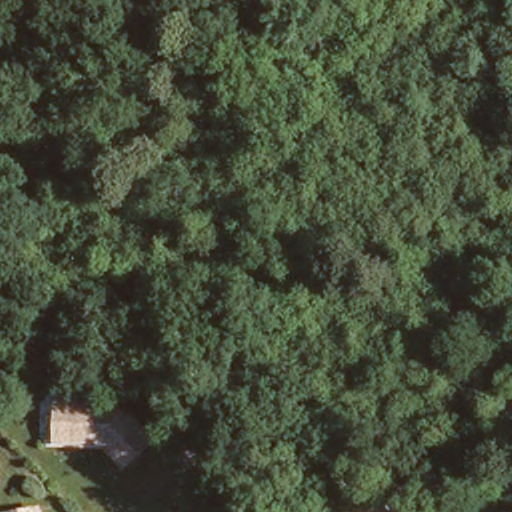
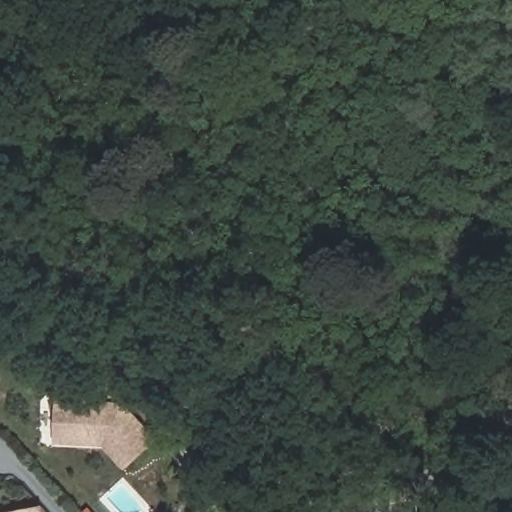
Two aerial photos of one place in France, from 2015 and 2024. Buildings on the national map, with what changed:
unchanged [(124,406),(155,442),(125,468),(104,445),(56,442),(59,402),(124,406)]
unchanged [(27,512),(38,510),(39,512),(27,512)]

